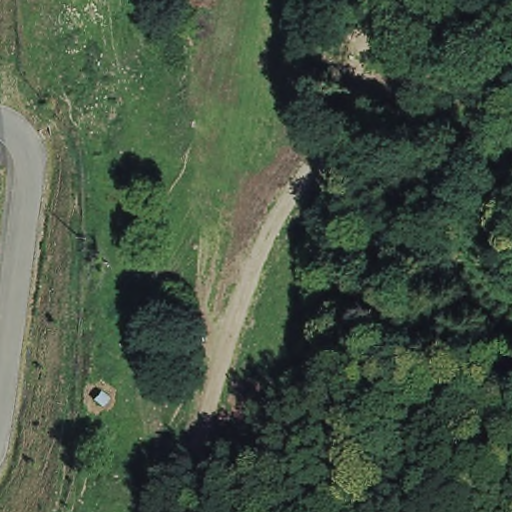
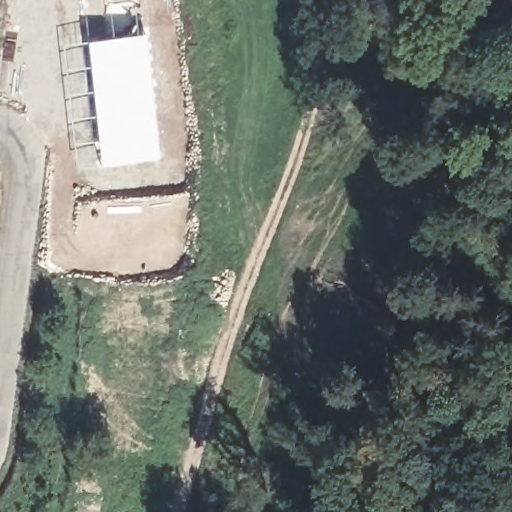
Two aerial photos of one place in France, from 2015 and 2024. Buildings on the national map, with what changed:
new [(87,39),(145,34),(163,161),(103,166),(87,39)]

